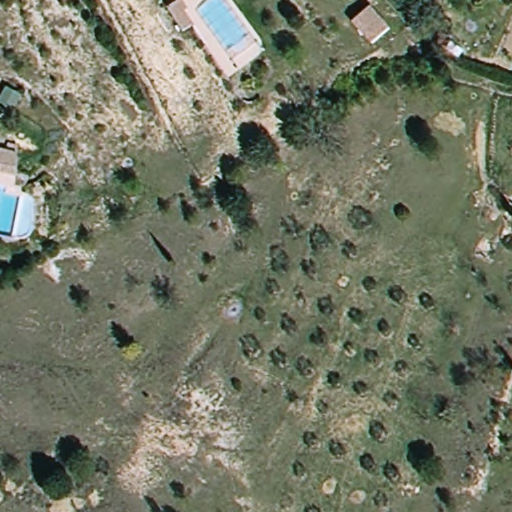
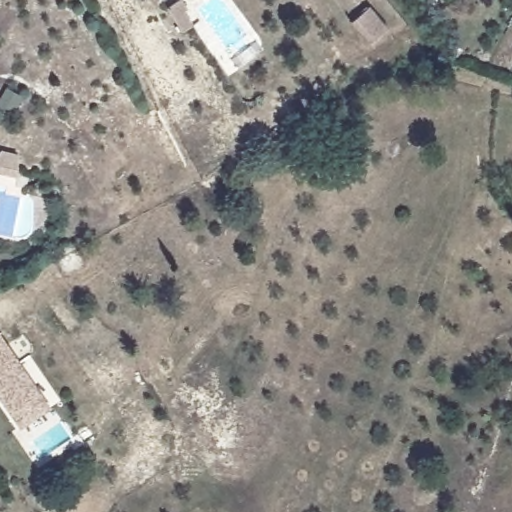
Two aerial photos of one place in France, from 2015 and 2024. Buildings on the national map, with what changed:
unchanged [(375,41),(357,20),(373,5),(392,26),(375,41)]
unchanged [(40,155),(42,176),(12,174),(25,154),(40,155)]
new [(21,429),(0,398),(0,333),(52,407),(21,429)]

